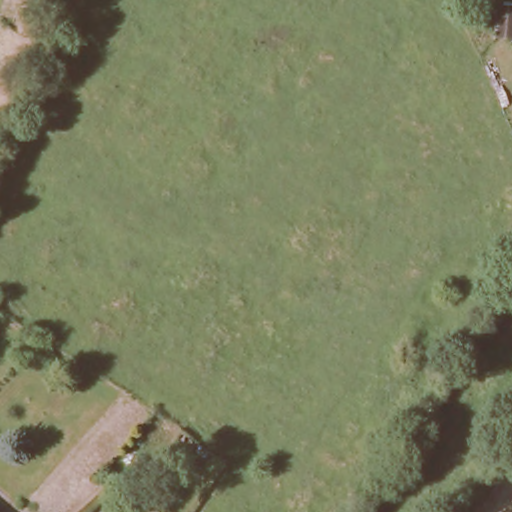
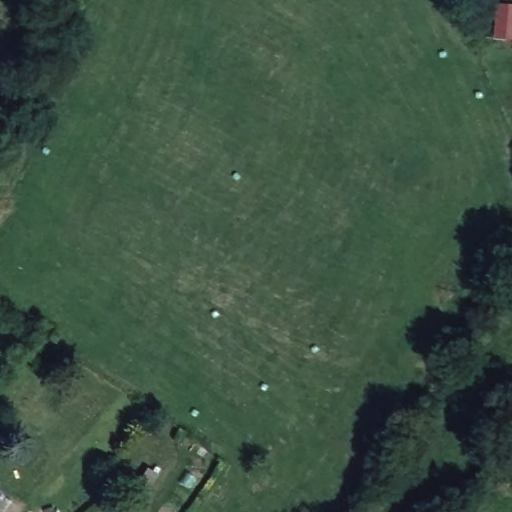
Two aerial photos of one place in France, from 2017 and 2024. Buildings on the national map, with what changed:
unchanged [(494,4),(511,5),(507,40),(490,38),(494,4)]
unchanged [(7,512),(0,512),(0,506),(7,512)]

